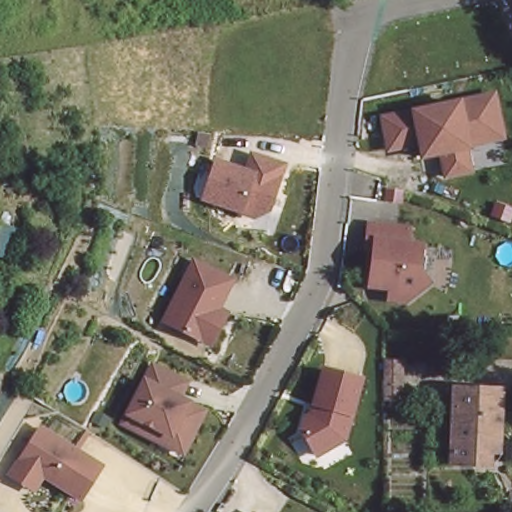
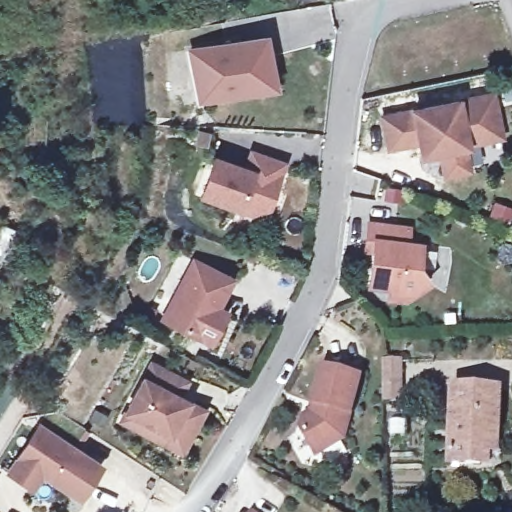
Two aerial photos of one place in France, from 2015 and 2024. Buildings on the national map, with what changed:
new [(263,40),(270,38),(281,91),(203,105),(200,99),(191,52),(263,40)]
unchanged [(471,149),(473,173),(441,178),(437,156),(419,160),(416,147),(391,151),(383,111),(497,94),(504,138),(471,149)]
unchanged [(273,213),(258,220),(200,200),(215,155),(246,165),(251,149),(291,160),(273,213)]
unchanged [(420,272),(430,283),(403,304),(393,293),(367,288),(371,241),(363,240),(364,222),(406,224),(407,232),(422,232),(420,272)]
unchanged [(223,307),(232,312),(216,350),(160,324),(193,258),(236,278),(223,307)]
unchanged [(185,455),(119,423),(148,362),(188,379),(183,396),(206,409),(185,455)]
new [(386,362),(403,362),(402,400),(385,400),(386,362)]
unchanged [(350,440),(319,458),(298,420),(311,411),(319,368),(364,377),(350,440)]
unchanged [(504,392),(502,435),(486,435),(486,464),(454,462),(456,389),(504,392)]
unchanged [(83,506),(43,481),(35,495),(5,477),(39,427),(105,467),(83,506)]

